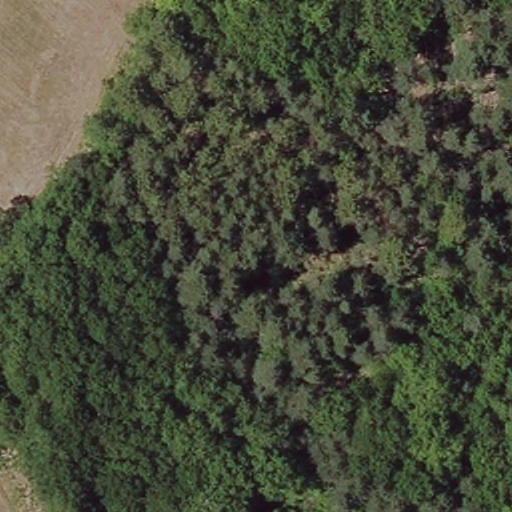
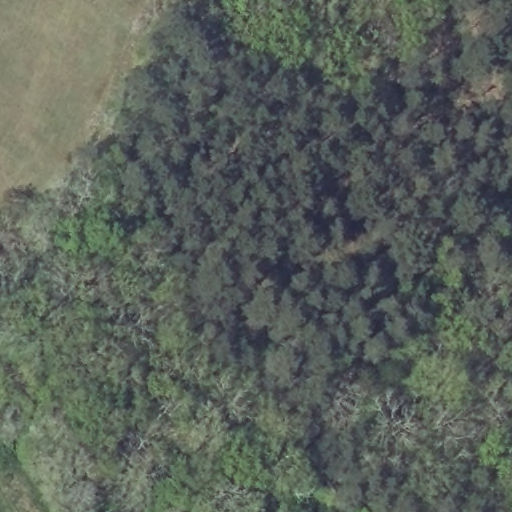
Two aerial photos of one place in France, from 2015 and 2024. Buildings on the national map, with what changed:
[]

